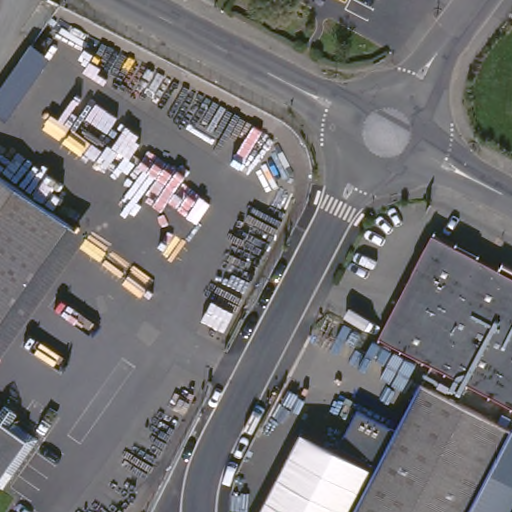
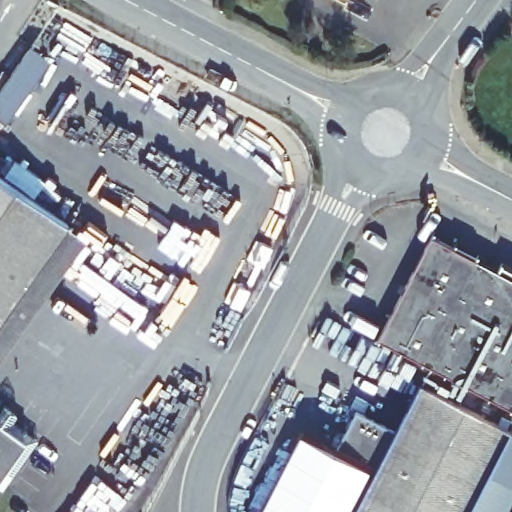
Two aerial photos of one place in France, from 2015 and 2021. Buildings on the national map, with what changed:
unchanged [(339,0),(350,0),(347,5),(339,0)]
unchanged [(0,113),(0,105),(41,46),(42,46),(55,56),(10,121),(0,113)]
unchanged [(0,334),(0,171),(76,225),(0,334)]
unchanged [(0,334),(76,225),(94,237),(0,373),(0,334)]
unchanged [(512,272),(512,512),(362,512),(439,366),(386,337),(441,235),(512,272)]
unchanged [(4,486),(0,483),(0,421),(33,444),(4,486)]
unchanged [(349,512),(261,512),(300,437),(370,471),(349,512)]

